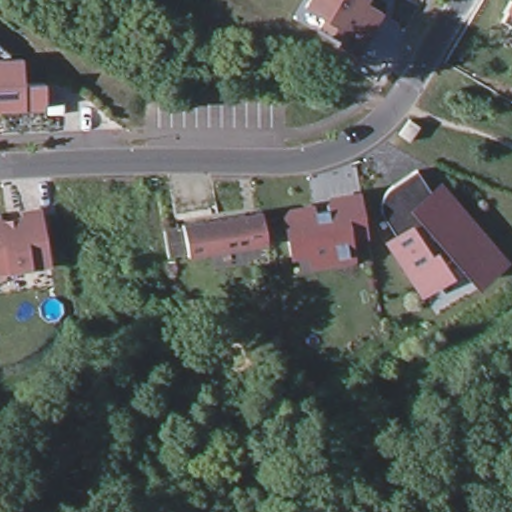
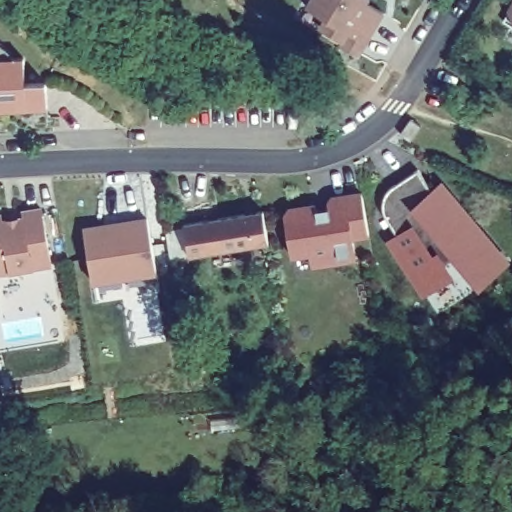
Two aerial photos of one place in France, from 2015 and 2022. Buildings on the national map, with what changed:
unchanged [(324,17),(305,6),(309,0),(366,0),(365,1),(383,11),(374,25),(364,41),(357,55),(340,45),(343,40),(319,25),(324,17)]
unchanged [(512,6),(512,27),(503,21),(509,10),(512,6)]
unchanged [(13,54),(13,59),(13,60),(15,60),(26,59),(27,69),(28,84),(45,83),(48,83),(49,86),(50,108),(28,109),(27,109),(15,110),(15,107),(0,108),(0,43),(3,45),(13,54)]
unchanged [(479,291),(414,217),(412,225),(432,255),(437,252),(452,280),(419,302),(384,241),(395,235),(379,211),(383,196),(388,186),(419,166),(434,190),(442,182),(511,263),(479,291)]
unchanged [(289,245),(284,216),(289,210),(314,206),(315,210),(328,209),(328,204),(331,198),(361,193),(361,195),(368,234),(351,237),(354,254),(333,257),(331,250),(301,255),(291,256),(289,245)]
unchanged [(2,222),(18,220),(23,219),(21,213),(40,210),(45,240),(46,245),(50,265),(23,270),(0,273),(0,217),(1,216),(2,222)]
unchanged [(198,254),(179,257),(174,230),(194,226),(193,224),(203,222),(209,221),(271,211),(273,210),(273,214),(278,242),(233,250),(208,254),(198,255),(198,254)]
new [(157,273),(91,284),(81,226),(146,215),(157,273)]

